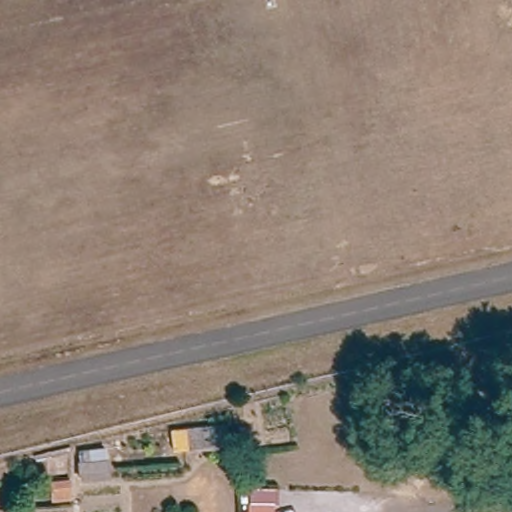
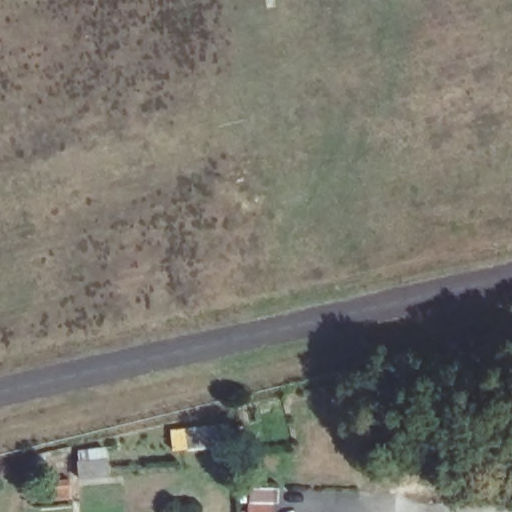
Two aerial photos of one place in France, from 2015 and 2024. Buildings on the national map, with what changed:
unchanged [(191,449),(189,427),(226,424),(241,424),(242,435),(227,436),(227,446),(191,449)]
unchanged [(94,443),(95,452),(83,453),(82,444),(94,443)]
unchanged [(79,461),(109,458),(110,476),(81,480),(79,461)]
unchanged [(72,478),(74,496),(57,497),(55,480),(72,478)]
unchanged [(253,509),(253,508),(253,504),(273,505),(273,510),(273,512),(253,512),(253,509)]

